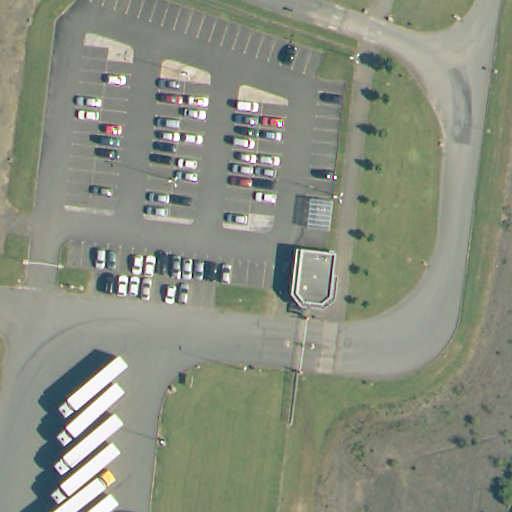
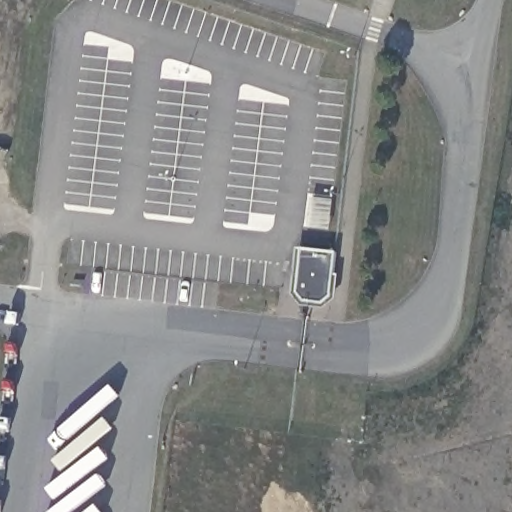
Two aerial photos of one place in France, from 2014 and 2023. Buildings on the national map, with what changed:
unchanged [(299,245),(334,248),(329,293),(320,300),(301,298),(294,288),(299,245)]

